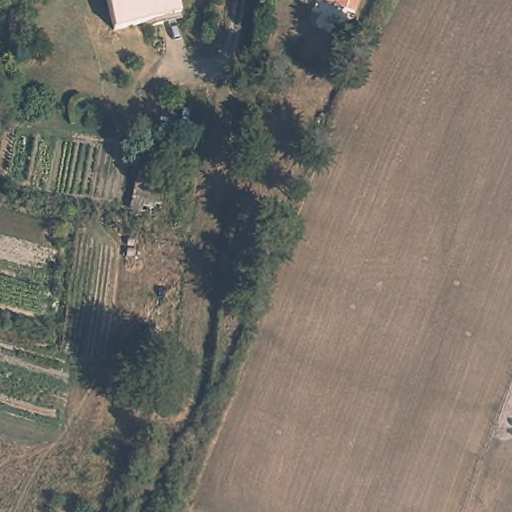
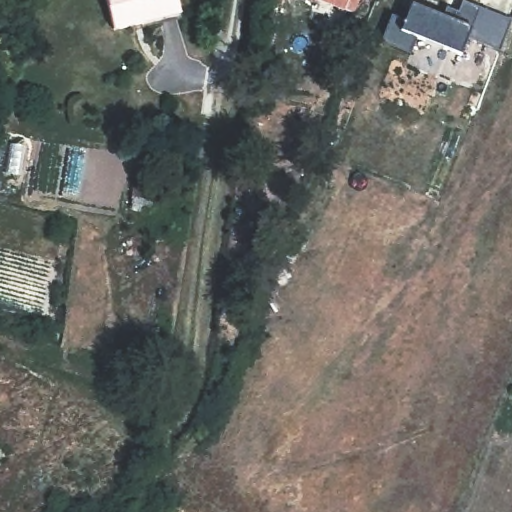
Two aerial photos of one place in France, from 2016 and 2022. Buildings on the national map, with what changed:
unchanged [(113,31),(105,0),(177,0),(180,15),(113,31)]
unchanged [(325,0),(358,0),(353,11),(325,0)]
new [(408,19),(415,1),(447,14),(450,5),(462,10),(466,0),(470,0),(483,6),(464,53),(420,35),(413,51),(385,40),(396,14),(408,19)]

